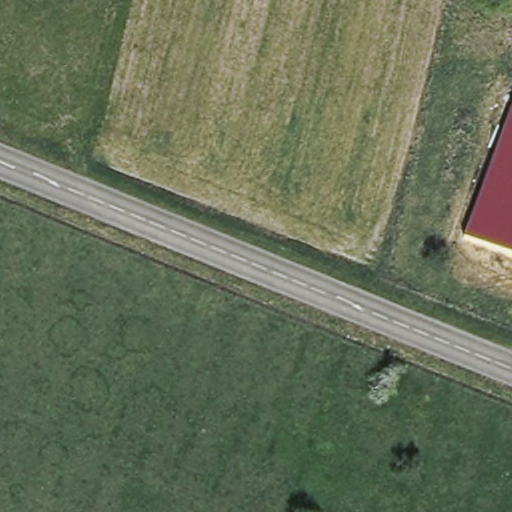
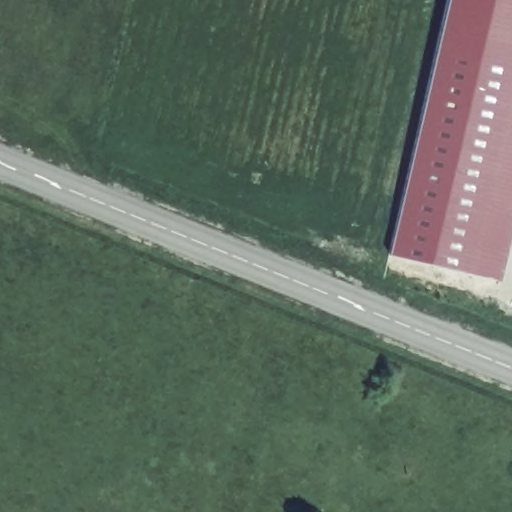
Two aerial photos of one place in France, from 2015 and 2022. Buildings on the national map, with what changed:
new [(512,108),(463,236),(482,243),(473,270),(392,240),(446,0),(512,0),(512,108)]
unchanged [(512,108),(512,255),(463,236),(512,108)]

